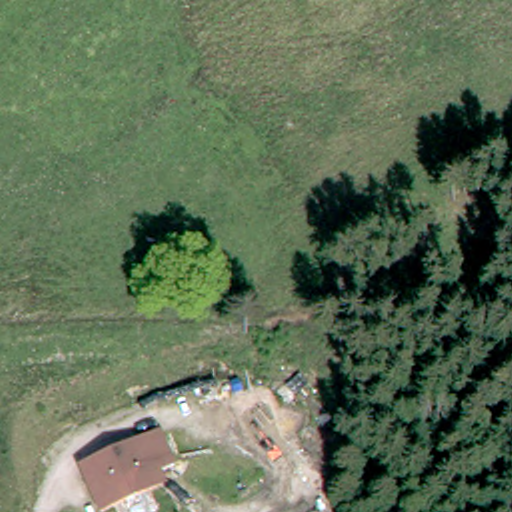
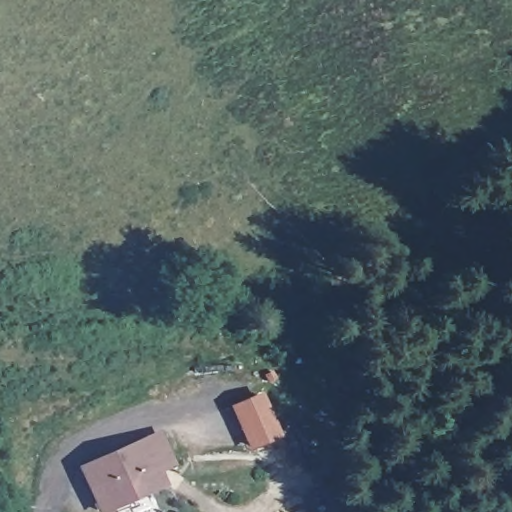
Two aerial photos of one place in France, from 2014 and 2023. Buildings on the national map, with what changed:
new [(282,438),(247,451),(229,406),(262,392),(282,438)]
unchanged [(164,472),(170,489),(108,512),(96,512),(75,468),(162,431),(179,466),(164,472)]

